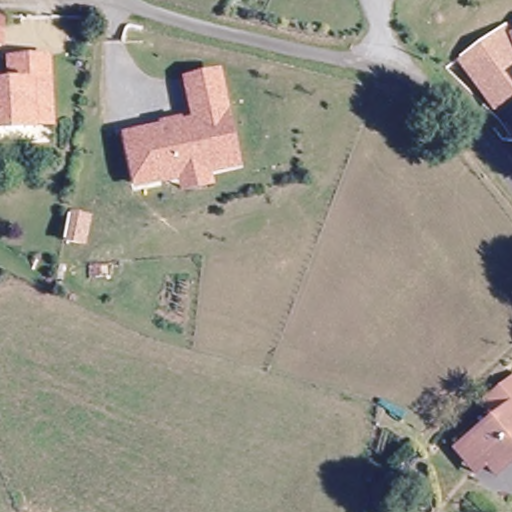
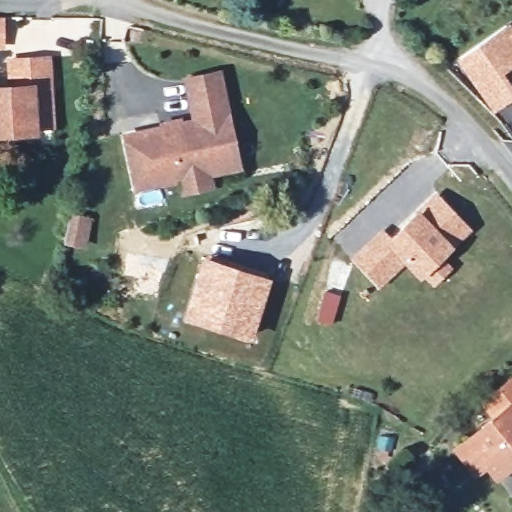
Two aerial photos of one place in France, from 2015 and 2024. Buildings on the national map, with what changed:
unchanged [(0,46),(0,17),(1,17),(1,47),(0,46)]
unchanged [(498,74),(512,93),(512,94),(493,107),(459,58),(470,50),(505,26),(512,36),(512,64),(498,74)]
unchanged [(32,130),(0,131),(0,90),(12,90),(10,60),(47,57),(51,109),(52,125),(32,126),(32,130)]
unchanged [(181,174),(167,177),(137,182),(127,132),(197,119),(191,92),(188,77),(219,71),(222,85),(227,115),(237,162),(223,165),(204,169),(207,182),(184,187),(181,174)]
new [(471,228),(454,246),(446,255),(453,267),(435,286),(424,271),(418,276),(405,262),(376,289),(348,258),(382,226),(392,236),(417,210),(435,191),(471,228)]
new [(202,257),(271,277),(251,339),(182,319),(202,257)]
new [(325,291),(341,295),(331,326),(315,322),(325,291)]
unchanged [(512,410),(512,467),(501,476),(500,474),(483,487),(457,454),(473,442),(473,441),(512,410)]

